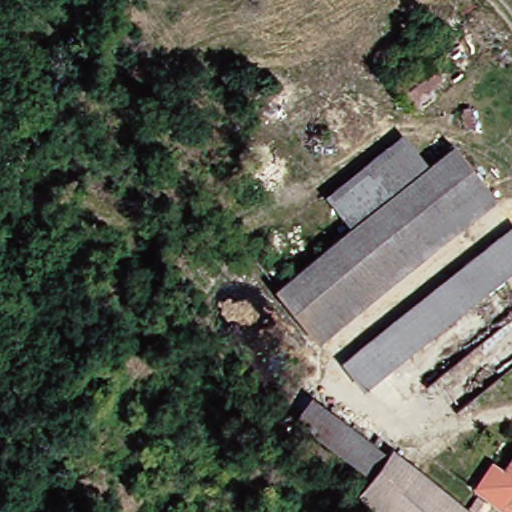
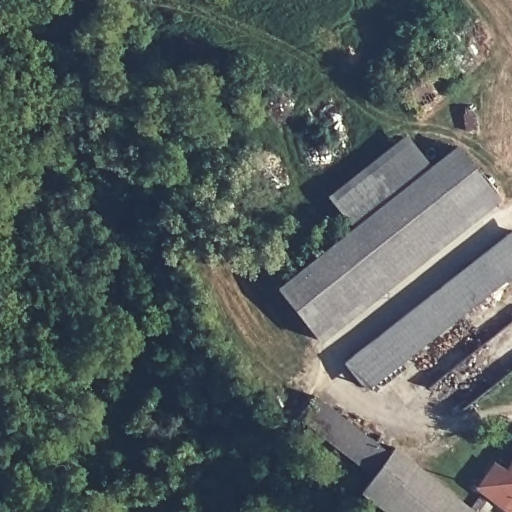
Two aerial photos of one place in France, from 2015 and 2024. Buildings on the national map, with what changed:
unchanged [(512,44),(512,54),(484,74),(479,72),(421,114),(389,71),(425,45),(430,51),(455,31),(454,30),(484,6),(512,44)]
unchanged [(375,127),(351,144),(323,100),(347,84),(375,127)]
unchanged [(409,136),(433,169),(462,147),(507,198),(324,344),(280,290),(355,230),(331,200),(409,136)]
unchanged [(512,233),(512,277),(504,283),(434,338),(371,392),(345,364),(512,233)]
unchanged [(317,395),(393,456),(400,449),(475,512),(389,512),(366,494),(373,480),(298,420),(317,395)]
unchanged [(497,465),(509,472),(512,467),(512,512),(505,512),(478,492),(497,465)]
unchanged [(490,503),(498,510),(495,512),(480,512),(490,503)]

